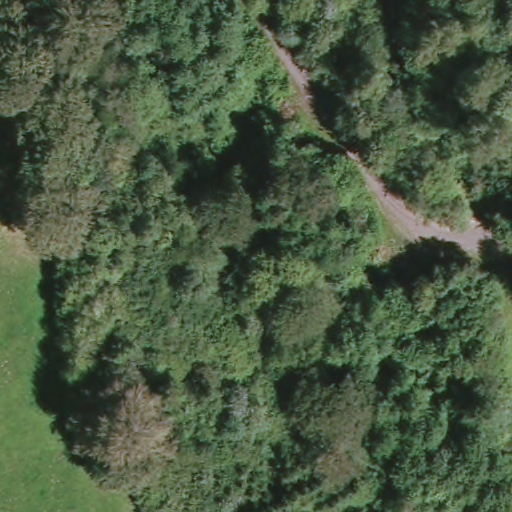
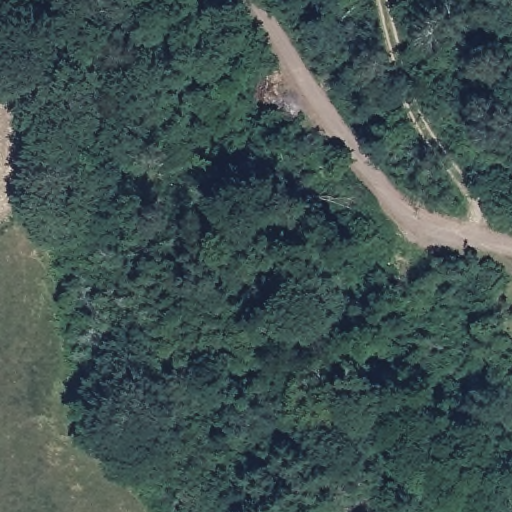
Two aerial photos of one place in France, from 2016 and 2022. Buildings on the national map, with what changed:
[]

